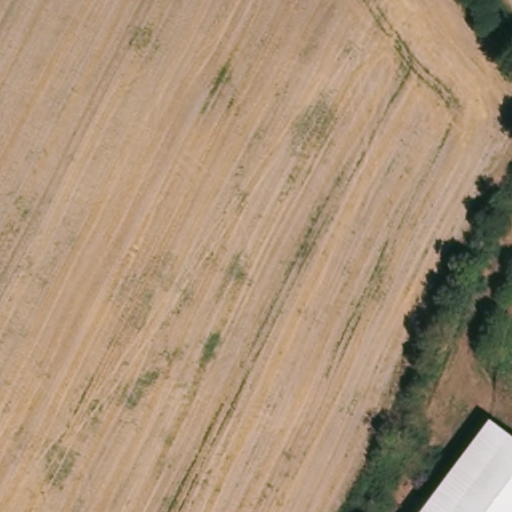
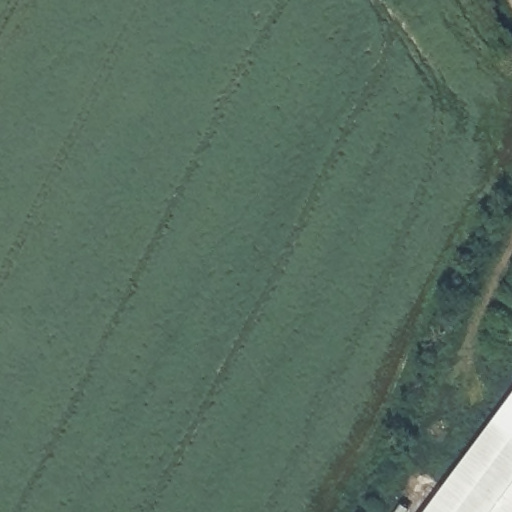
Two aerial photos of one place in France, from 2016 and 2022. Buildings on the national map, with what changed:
unchanged [(512,443),(512,512),(441,512),(499,433),(512,443)]

